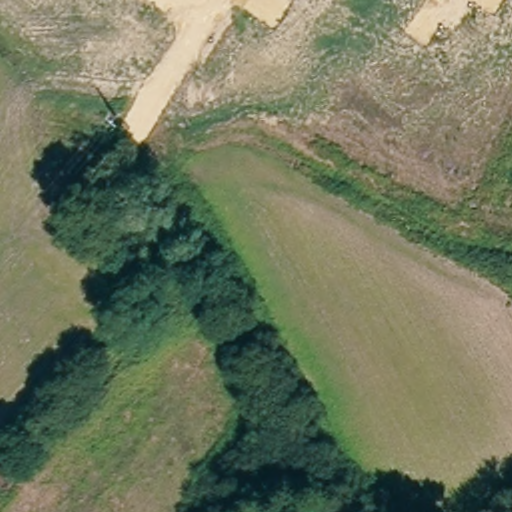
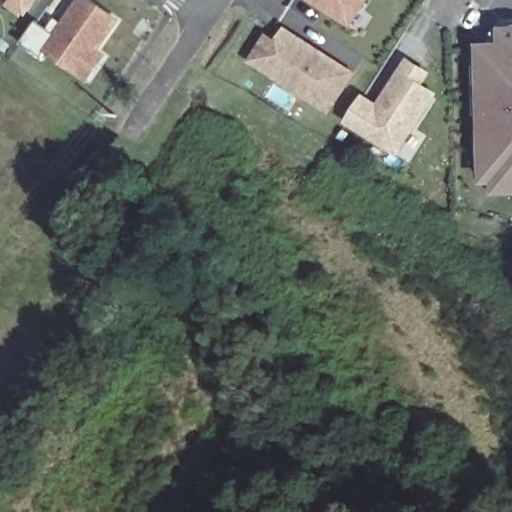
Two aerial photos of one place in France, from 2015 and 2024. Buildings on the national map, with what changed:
new [(0,5),(0,0),(30,0),(18,18),(0,5)]
unchanged [(86,77),(79,72),(45,49),(41,56),(20,41),(36,19),(49,28),(56,18),(64,24),(80,0),(90,0),(116,19),(93,52),(100,57),(86,77)]
new [(351,25),(310,0),(367,0),(351,25)]
new [(502,43),(502,26),(512,26),(512,195),(495,195),(495,184),(484,184),(480,42),(502,43)]
new [(251,60),(267,37),(277,43),(285,30),(300,40),(310,47),(352,74),(328,110),(299,92),(276,76),(251,60)]
new [(378,107),(385,95),(408,60),(426,72),(419,84),(433,93),(396,150),(347,119),(361,96),(378,107)]

